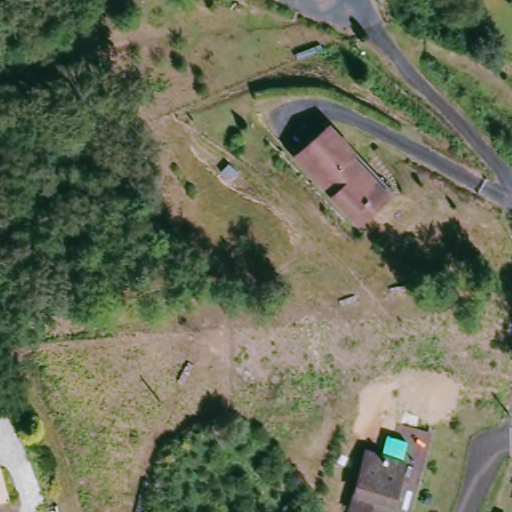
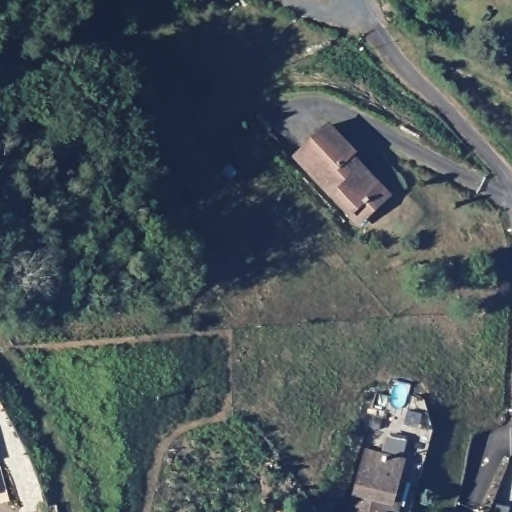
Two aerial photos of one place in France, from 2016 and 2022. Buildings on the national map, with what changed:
unchanged [(361,222),(353,214),(297,155),(330,124),(357,151),(352,155),(364,167),(365,165),(382,184),(391,194),(361,222)]
unchanged [(359,512),(352,510),(371,447),(405,457),(397,483),(405,485),(397,512),(359,512)]

